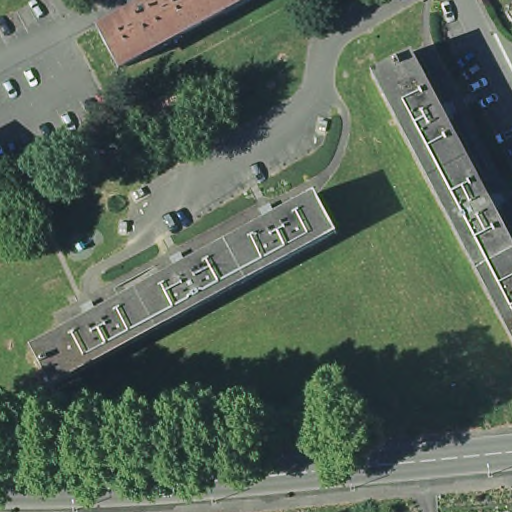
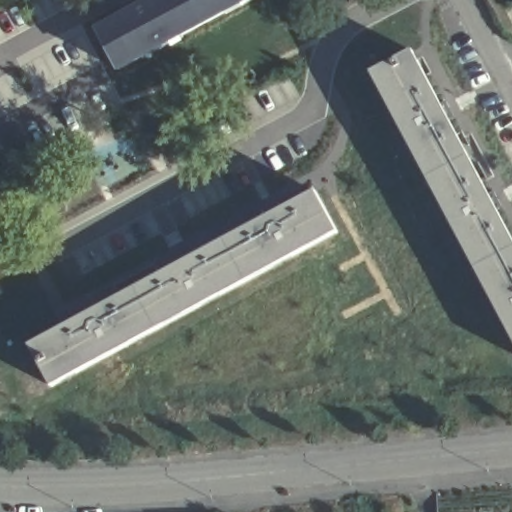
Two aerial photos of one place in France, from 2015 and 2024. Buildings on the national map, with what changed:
unchanged [(99,34),(165,0),(189,0),(203,26),(118,72),(99,34)]
unchanged [(189,0),(252,0),(203,26),(189,0)]
unchanged [(378,75),(418,53),(473,157),(433,178),(378,75)]
unchanged [(473,157),(512,233),(512,254),(481,270),(433,178),(473,157)]
unchanged [(314,193),(336,233),(246,281),(224,241),(314,193)]
unchanged [(224,241),(246,281),(156,329),(133,290),(224,241)]
unchanged [(512,330),(481,270),(512,254),(512,330)]
unchanged [(156,329),(52,385),(31,345),(133,290),(156,329)]

